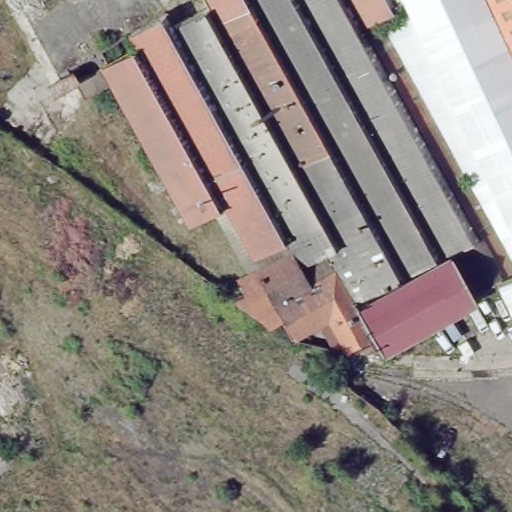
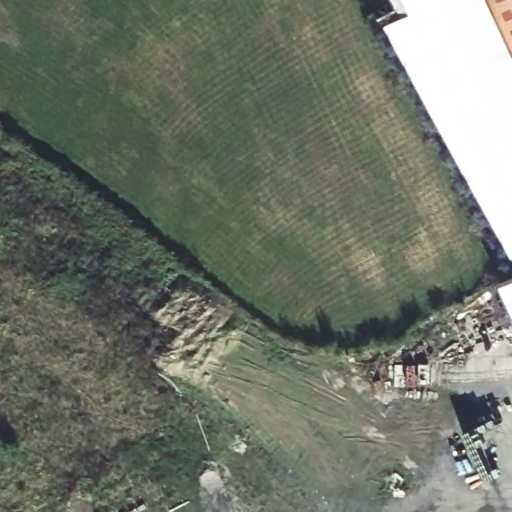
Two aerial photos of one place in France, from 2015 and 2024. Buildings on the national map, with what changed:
demolished [(112,60),(132,47),(127,39),(137,34),(163,17),(167,16),(175,30),(209,11),(202,0),(347,0),(395,87),(447,181),(480,240),(452,256),(455,261),(474,297),(477,302),(464,310),(424,331),(379,355),(346,355),(329,322),(292,342),(281,323),(267,330),(257,322),(231,302),(245,295),(239,282),(247,278),(259,271),(225,210),(212,216),(190,227),(112,87),(103,70),(75,86),(68,90),(61,79),(67,75),(107,51),(112,60)]
demolished [(385,20),(390,30),(489,208),(490,211),(500,230),(480,240),(447,181),(395,87),(347,0),(396,0),(402,10),(385,20)]
unchanged [(490,211),(489,208),(390,30),(407,19),(402,10),(396,0),(512,0),(512,250),(500,230),(490,211)]
demolished [(474,297),(455,261),(452,256),(480,240),(500,230),(479,295),(474,297)]
demolished [(512,250),(512,280),(504,284),(479,295),(500,230),(512,250)]
unchanged [(512,280),(512,303),(504,284),(512,280)]

